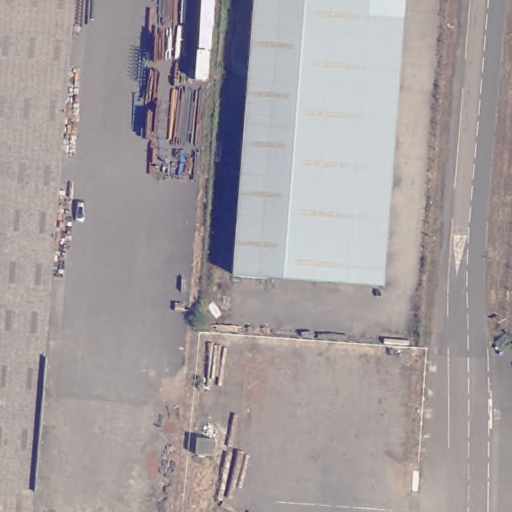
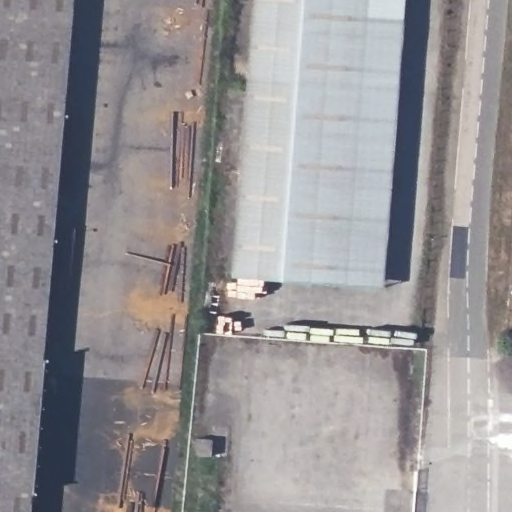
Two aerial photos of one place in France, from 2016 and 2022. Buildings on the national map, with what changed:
unchanged [(33,512),(0,512),(0,0),(73,0),(35,483),(33,512)]
unchanged [(237,280),(258,0),(408,0),(386,292),(237,280)]

